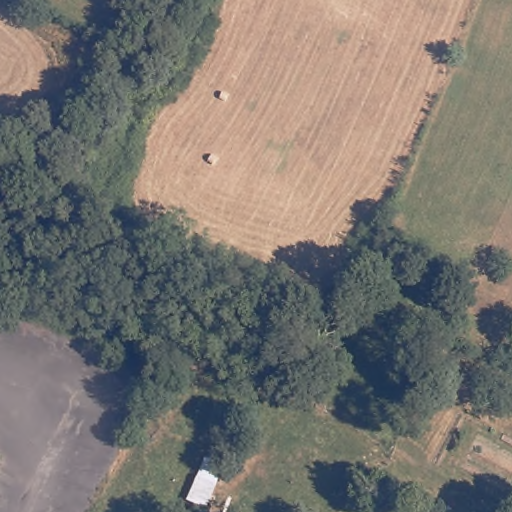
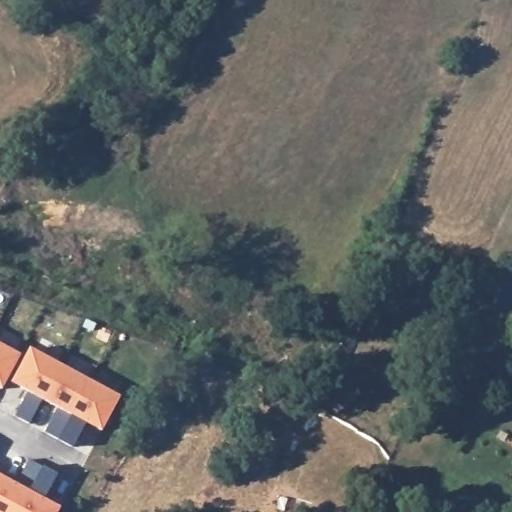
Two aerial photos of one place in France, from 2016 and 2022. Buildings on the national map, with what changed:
new [(21,356),(0,389),(0,344),(21,356)]
new [(121,398),(101,433),(84,423),(73,446),(58,438),(46,432),(58,409),(41,400),(29,422),(14,414),(28,391),(11,382),(30,347),(121,398)]
new [(16,483),(31,459),(43,465),(58,473),(44,498),(59,507),(57,512),(0,512),(0,475),(16,483)]

